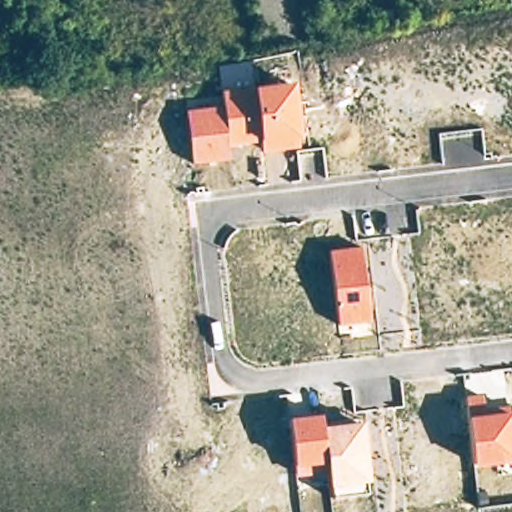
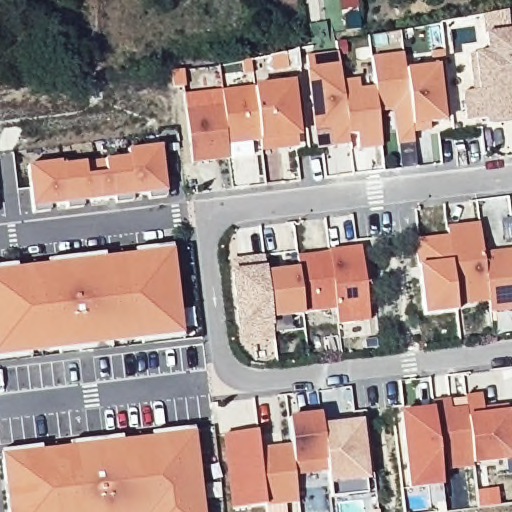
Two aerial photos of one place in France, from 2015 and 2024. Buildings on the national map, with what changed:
new [(509,29),(512,28),(512,58),(511,50),(509,29)]
new [(488,118),(466,120),(463,96),(479,94),(474,54),(511,50),(512,58),(512,121),(488,124),(488,118)]
new [(339,68),(340,80),(358,78),(359,89),(374,87),(371,58),(403,54),(406,72),(437,68),(443,123),(429,124),(429,132),(411,134),(413,144),(395,146),(390,111),(376,114),(379,147),(356,150),(354,135),(346,136),(347,144),(331,146),(328,128),(313,130),(305,72),(339,68)]
unchanged [(301,138),(299,138),(299,149),(261,152),(259,143),(228,145),(229,162),(191,165),(186,108),(222,104),(221,89),(253,86),(294,82),(301,138)]
new [(169,147),(175,197),(153,199),(153,194),(136,197),(131,159),(130,151),(169,147)]
new [(131,159),(136,197),(136,202),(119,203),(119,198),(103,200),(98,163),(131,159)]
new [(64,162),(65,167),(70,204),(48,206),(49,211),(32,213),(26,167),(64,162)]
new [(98,163),(103,200),(86,202),(87,207),(70,209),(70,204),(65,167),(98,163)]
new [(413,241),(446,237),(444,227),(476,223),(481,254),(512,249),(512,311),(489,314),(487,300),(454,305),(455,312),(423,316),(417,269),(413,241)]
new [(30,358),(0,362),(0,275),(1,275),(1,271),(48,265),(49,270),(88,265),(88,261),(149,253),(134,255),(133,250),(171,245),(172,254),(181,331),(182,340),(141,345),(139,340),(156,338),(91,346),(92,349),(78,351),(77,347),(11,355),(29,353),(30,358)]
unchanged [(371,322),(337,326),(328,250),(363,246),(371,322)]
new [(335,310),(301,315),(269,319),(271,328),(271,341),(238,345),(236,327),(228,272),(232,272),(231,260),(264,256),(266,273),(296,270),(293,257),(328,250),(335,310)]
new [(47,261),(103,254),(104,259),(88,261),(88,265),(49,270),(48,265),(47,266),(47,261)]
new [(15,265),(16,270),(1,271),(1,275),(0,275),(0,266),(15,265)]
new [(77,347),(78,351),(92,349),(92,346),(110,344),(110,349),(58,355),(58,350),(77,347)]
unchanged [(466,396),(483,394),(485,409),(509,406),(510,410),(512,410),(512,462),(473,466),(466,396)]
new [(438,471),(439,486),(407,490),(399,412),(433,409),(428,400),(466,396),(473,466),(438,471)]
unchanged [(332,497),(328,474),(296,477),(293,447),(289,416),(323,413),(324,425),(364,421),(370,480),(367,481),(368,493),(332,497)]
new [(23,458),(23,453),(88,445),(88,442),(103,441),(104,444),(168,436),(151,438),(151,433),(193,428),(194,437),(202,512),(8,512),(1,460),(23,458)]
new [(296,477),(299,502),(264,508),(231,512),(223,435),(255,431),(257,451),(293,447),(296,477)]
new [(104,444),(103,441),(88,442),(88,445),(69,448),(68,443),(121,437),(121,442),(104,444)]
new [(0,451),(40,447),(40,452),(23,453),(23,458),(1,460),(0,451)]

